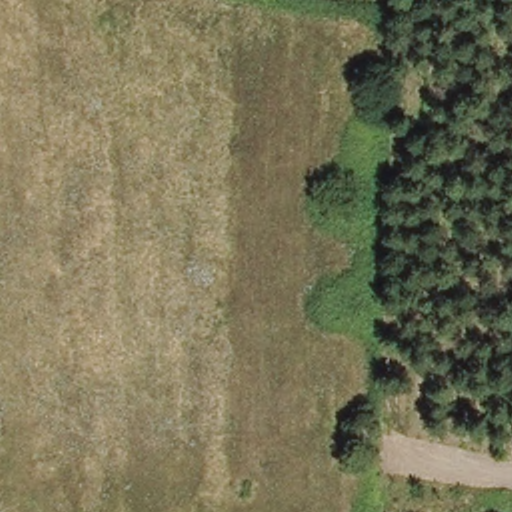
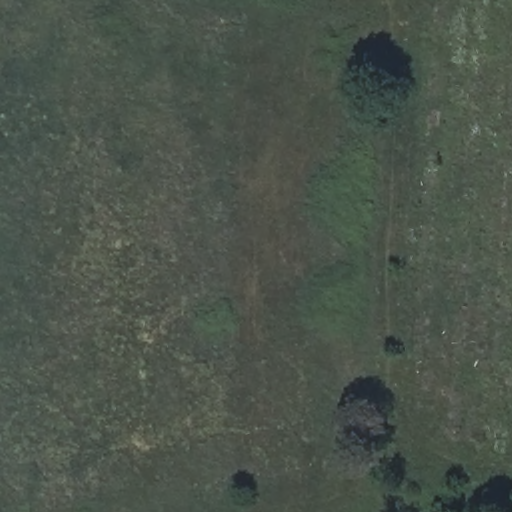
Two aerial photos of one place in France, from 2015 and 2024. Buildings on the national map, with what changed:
[]

